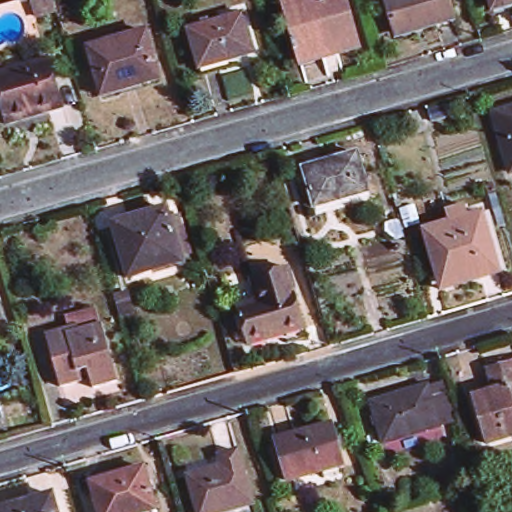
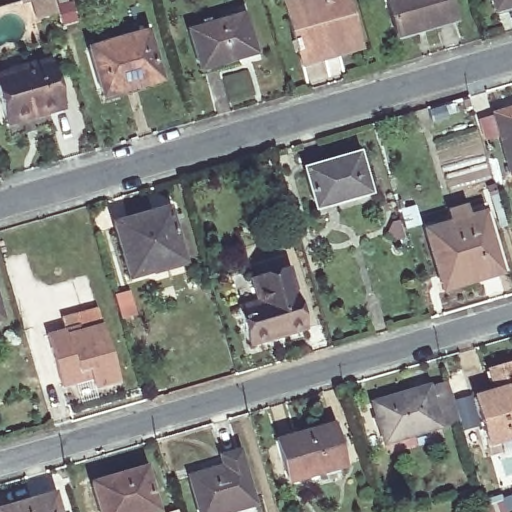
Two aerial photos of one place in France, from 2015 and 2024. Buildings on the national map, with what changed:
unchanged [(36,18),(30,0),(53,0),(56,13),(36,18)]
unchanged [(357,49),(299,65),(280,1),(285,0),(344,0),(357,49)]
unchanged [(459,21),(400,38),(389,0),(452,0),(459,21)]
unchanged [(489,0),(512,0),(512,3),(491,9),(489,0)]
unchanged [(252,54),(197,69),(187,30),(241,15),(252,54)]
unchanged [(158,81),(100,97),(86,47),(143,31),(158,81)]
unchanged [(62,107),(4,124),(0,110),(0,75),(49,61),(62,107)]
unchanged [(492,113),(512,108),(512,173),(509,173),(492,113)]
unchanged [(367,193),(313,208),(303,169),(356,154),(367,193)]
unchanged [(182,262),(126,278),(110,222),(166,207),(182,262)]
unchanged [(497,278),(441,295),(423,235),(480,218),(497,278)]
unchanged [(305,335),(246,352),(235,314),(260,307),(253,282),(286,272),(305,335)]
unchanged [(127,293),(133,313),(118,317),(117,311),(113,297),(127,293)]
unchanged [(93,394),(87,376),(78,379),(80,386),(58,392),(43,339),(66,333),(63,322),(95,313),(100,330),(115,387),(93,394)]
unchanged [(472,400),(496,393),(490,374),(512,367),(512,443),(486,450),(472,400)]
unchanged [(445,383),(457,424),(383,446),(370,406),(445,383)]
unchanged [(342,465),(286,481),(275,440),(330,424),(342,465)]
unchanged [(226,512),(196,512),(185,477),(220,466),(217,456),(237,450),(253,504),(226,512)]
unchanged [(146,512),(98,512),(90,482),(143,467),(155,509),(146,512)]
unchanged [(0,512),(0,508),(50,493),(56,512),(0,512)]

